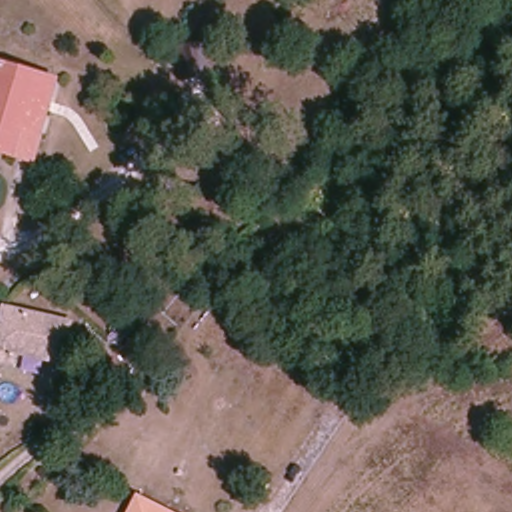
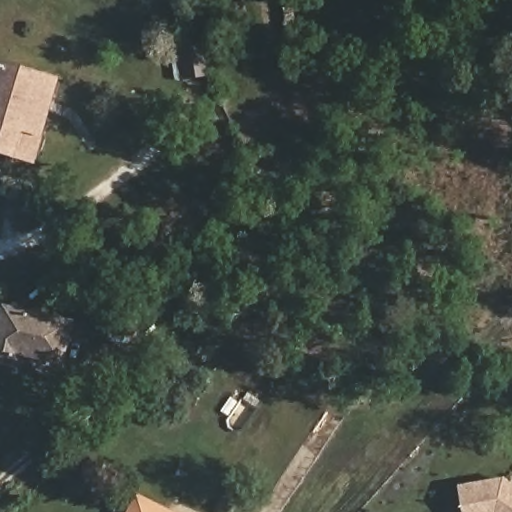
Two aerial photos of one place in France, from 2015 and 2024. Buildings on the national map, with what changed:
unchanged [(179,80),(176,46),(203,43),(207,74),(179,80)]
unchanged [(31,158),(0,150),(0,66),(51,80),(31,158)]
unchanged [(68,360),(22,351),(19,363),(0,358),(0,342),(8,309),(76,324),(68,360)]
unchanged [(139,334),(116,356),(101,340),(125,319),(139,334)]
new [(458,486),(504,476),(512,482),(512,512),(463,512),(458,486)]
unchanged [(138,496),(167,512),(128,512),(138,496)]

